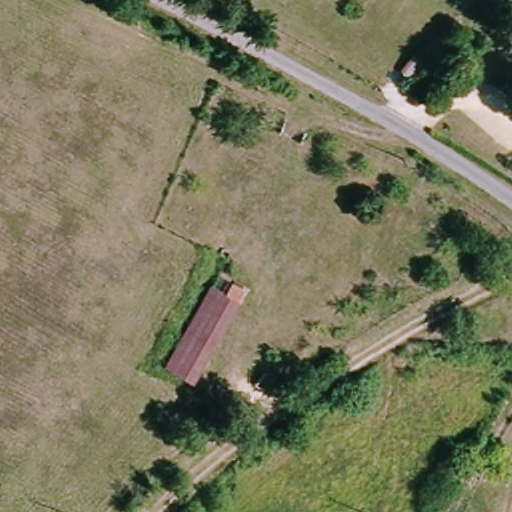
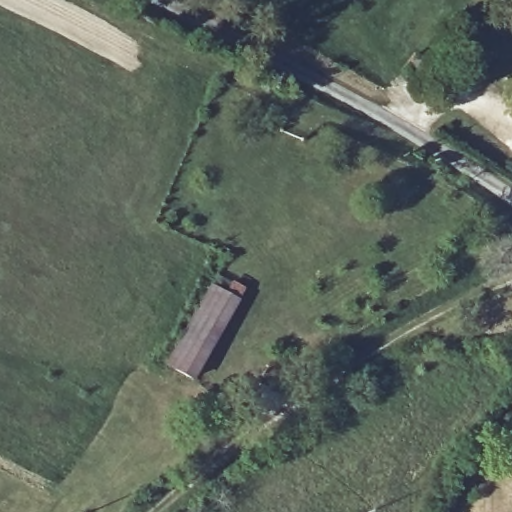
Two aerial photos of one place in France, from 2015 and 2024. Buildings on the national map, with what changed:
unchanged [(192,381),(172,370),(208,295),(230,306),(192,381)]

